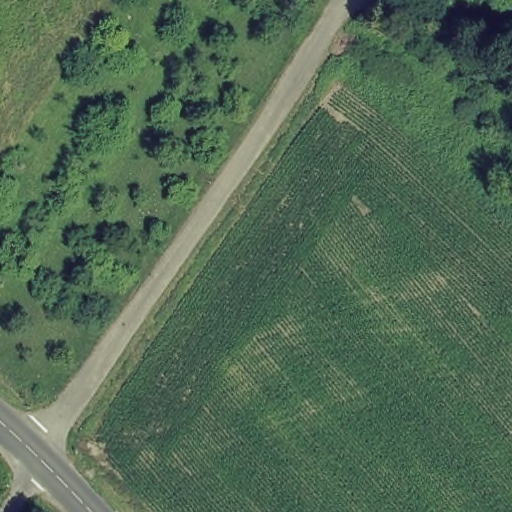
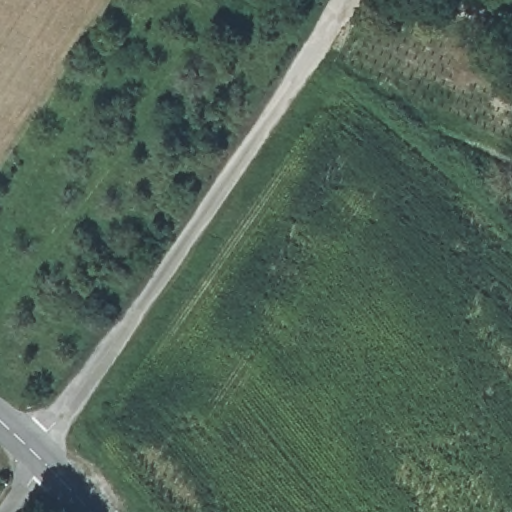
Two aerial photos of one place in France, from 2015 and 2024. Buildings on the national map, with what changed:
unchanged [(44,512),(52,510),(53,512),(44,512)]

